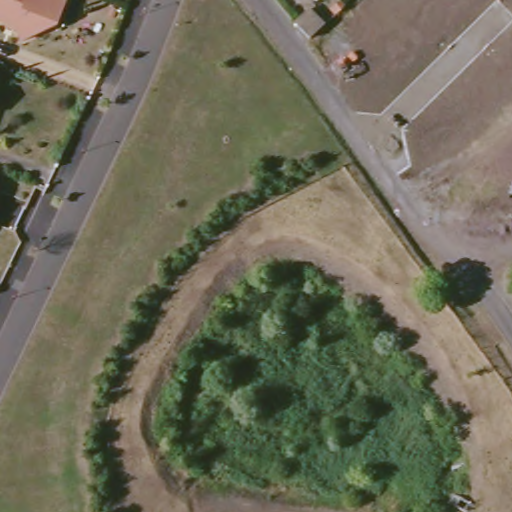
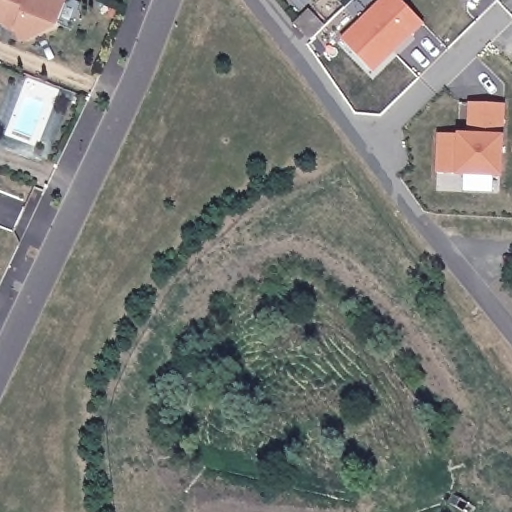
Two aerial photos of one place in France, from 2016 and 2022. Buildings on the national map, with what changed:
unchanged [(25,44),(17,30),(0,24),(0,0),(61,0),(70,3),(60,28),(25,44)]
new [(341,38),(380,0),(401,0),(425,23),(373,74),(341,38)]
unchanged [(319,41),(304,23),(320,9),(335,25),(319,41)]
new [(439,130),(469,131),(470,99),(504,100),(500,172),(437,169),(439,130)]

